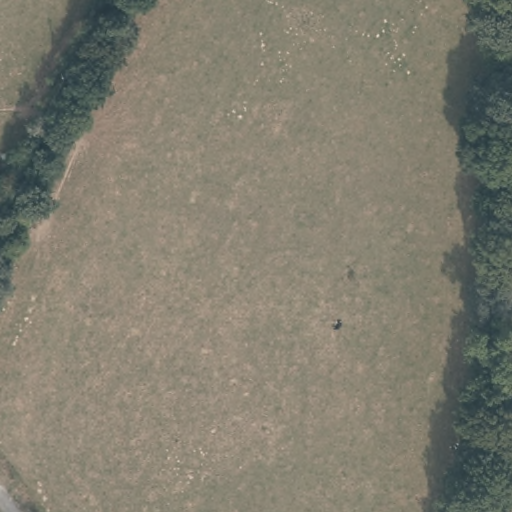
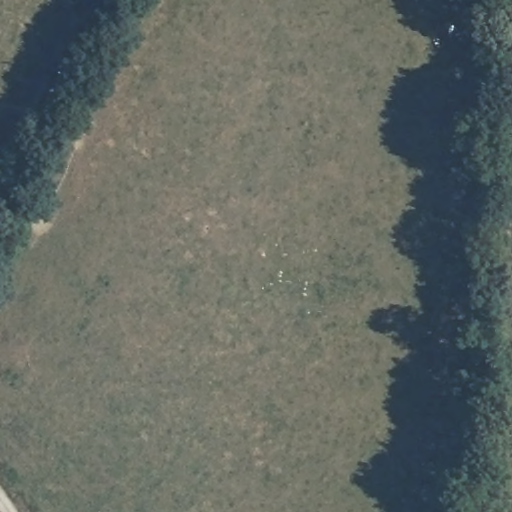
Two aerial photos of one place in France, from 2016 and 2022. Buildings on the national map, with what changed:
[]

